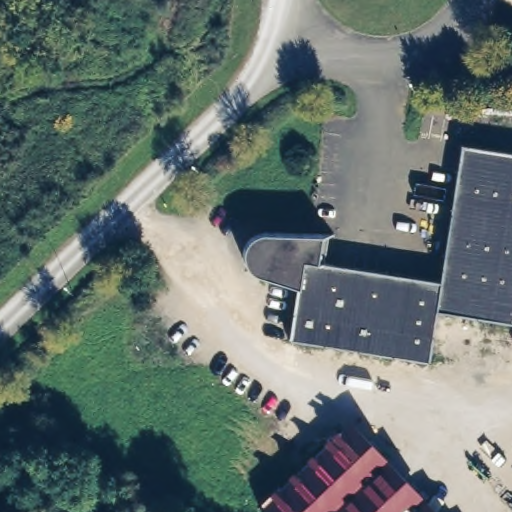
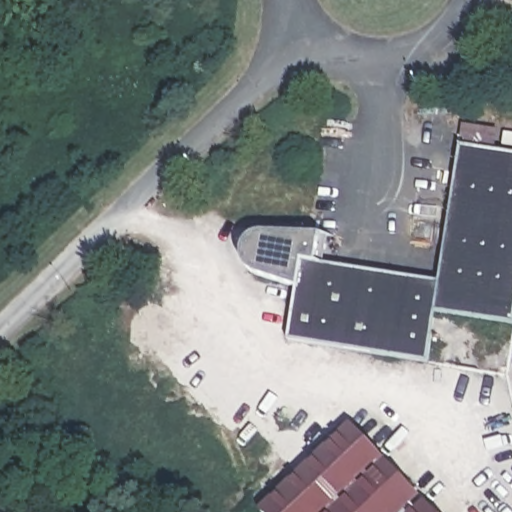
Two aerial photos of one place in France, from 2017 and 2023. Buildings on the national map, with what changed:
unchanged [(291,340),(298,290),(259,278),(253,275),(248,271),(246,267),(242,258),(241,254),(243,250),(245,246),(248,243),(251,240),(255,238),(259,237),(268,236),(328,236),(324,264),(440,280),(460,143),(512,151),(512,318),(437,309),(429,358),(291,340)]
unchanged [(403,512),(264,512),(261,508),(348,422),(421,496),(403,512)]
unchanged [(413,512),(424,501),(435,512),(413,512)]

